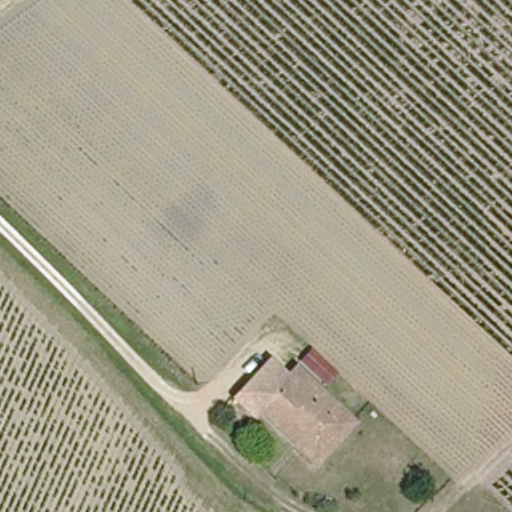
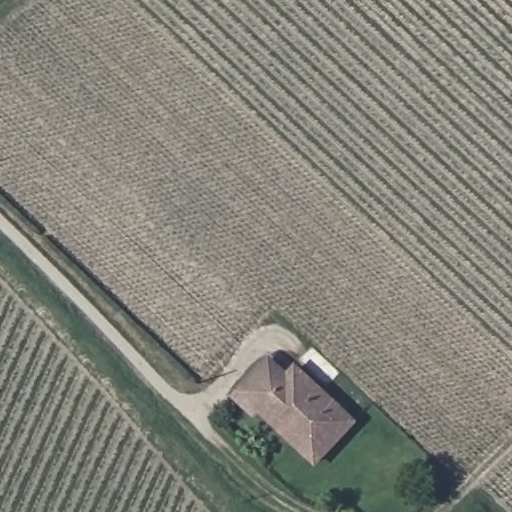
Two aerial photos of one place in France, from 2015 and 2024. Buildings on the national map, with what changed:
unchanged [(267,413),(263,417),(241,397),(273,363),(290,380),(299,370),(359,424),(322,465),(310,454),(310,453),(291,436),(267,413)]

